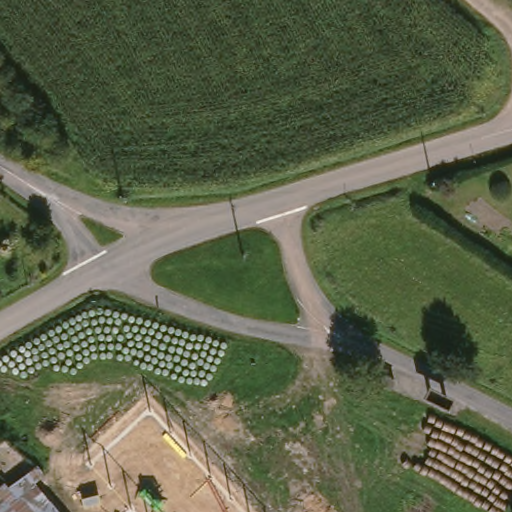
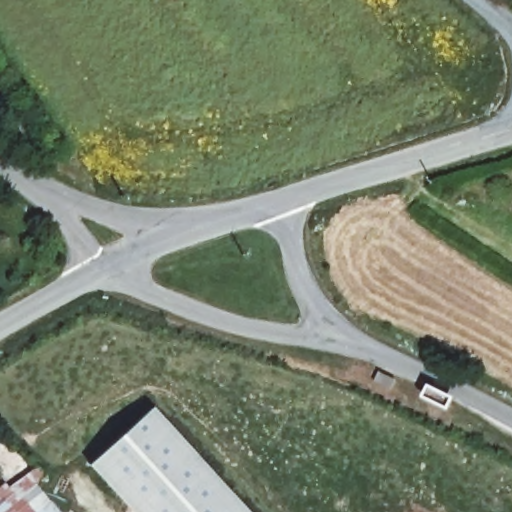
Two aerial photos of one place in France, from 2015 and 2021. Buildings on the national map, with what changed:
new [(154,403),(252,512),(141,512),(92,458),(154,403)]
unchanged [(1,446),(0,447),(0,445),(1,446)]
unchanged [(54,512),(0,512),(0,494),(21,477),(54,512)]

